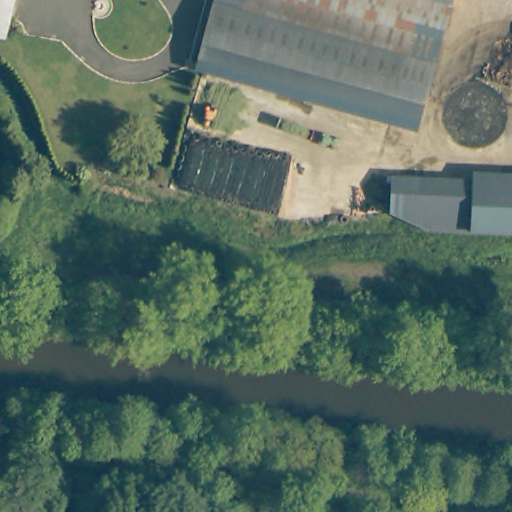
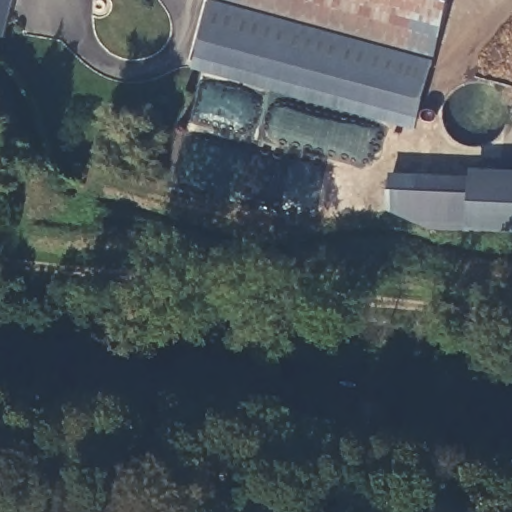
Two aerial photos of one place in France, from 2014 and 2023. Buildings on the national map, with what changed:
unchanged [(0,43),(0,0),(15,0),(0,43)]
unchanged [(431,68),(421,104),(226,51),(201,45),(211,8),(214,0),(449,0),(431,68)]
unchanged [(512,235),(430,231),(390,215),(391,179),(512,184),(512,235)]

